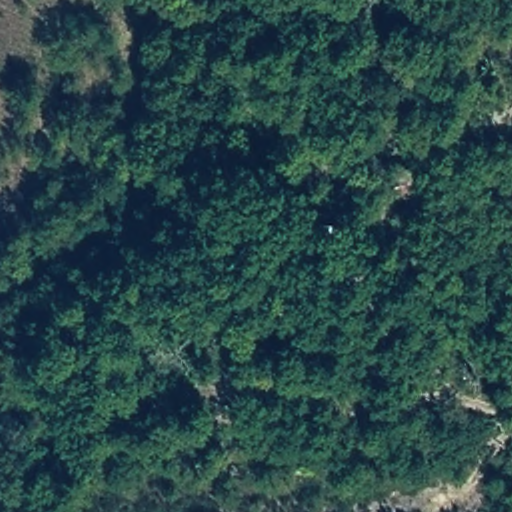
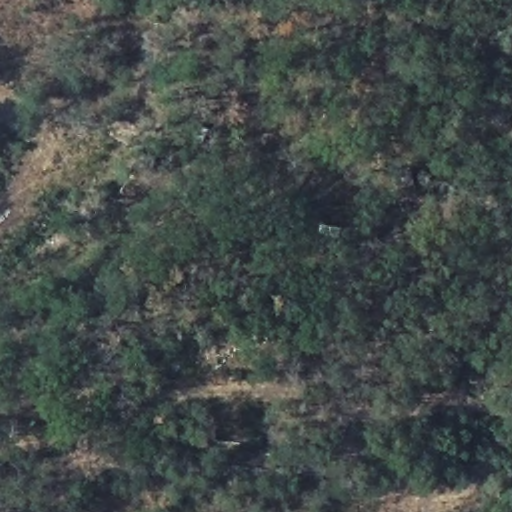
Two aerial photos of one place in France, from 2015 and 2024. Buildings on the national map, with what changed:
unchanged [(410,173),(413,198),(394,201),(389,176),(410,173)]

